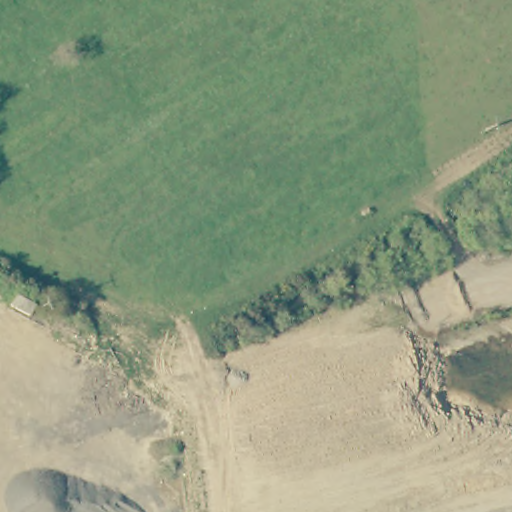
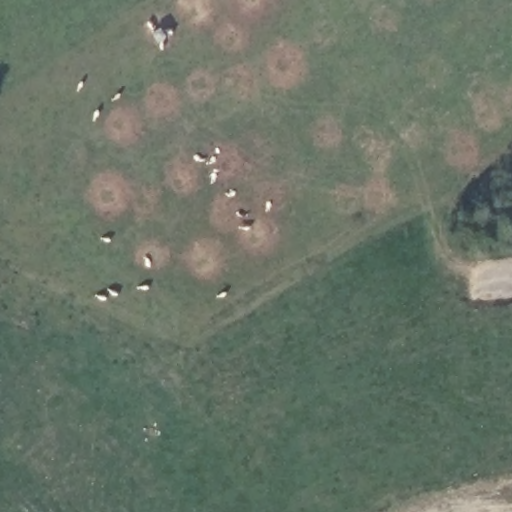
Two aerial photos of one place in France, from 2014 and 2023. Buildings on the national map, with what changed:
[]

